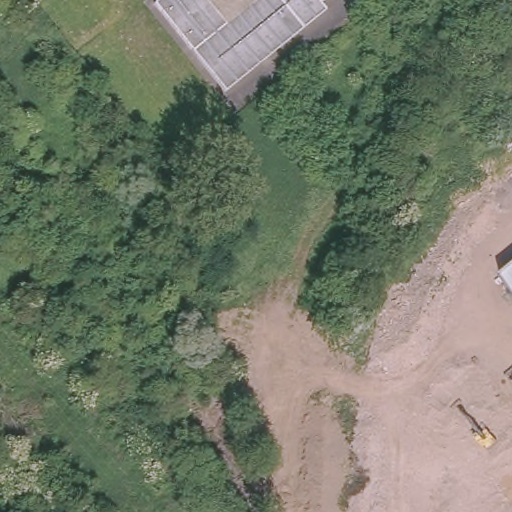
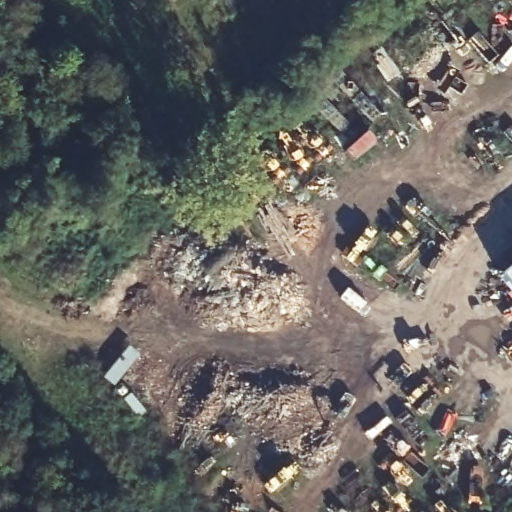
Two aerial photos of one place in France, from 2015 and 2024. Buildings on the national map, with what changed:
demolished [(158,0),(205,0),(225,24),(255,0),(322,0),(320,2),(325,8),(225,91),(153,4),(158,0)]
unchanged [(512,266),(512,284),(503,273),(512,266)]

